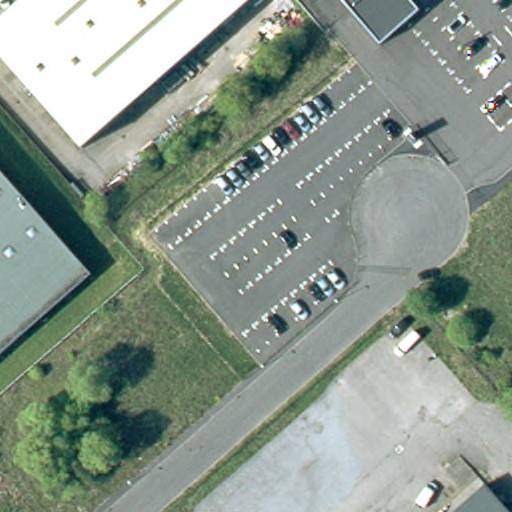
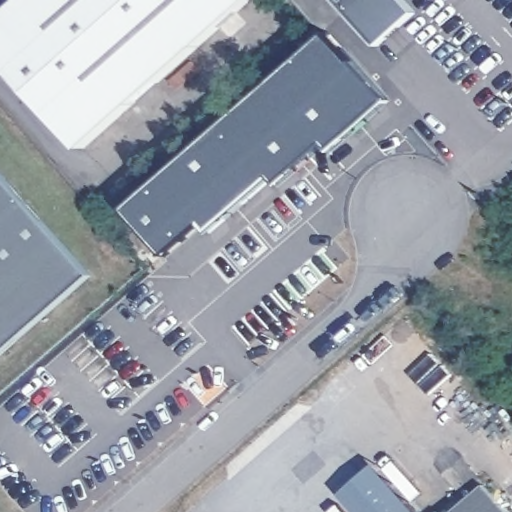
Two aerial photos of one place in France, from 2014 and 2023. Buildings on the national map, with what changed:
unchanged [(87,149),(0,50),(0,25),(28,0),(255,0),(87,149)]
unchanged [(343,0),(410,0),(420,11),(382,45),(343,0)]
new [(333,30),(393,99),(334,151),(327,142),(281,184),(275,176),(213,230),(207,223),(169,256),(128,209),(333,30)]
unchanged [(0,353),(0,162),(95,270),(0,353)]
new [(343,495),(377,465),(420,512),(358,512),(343,495)]
unchanged [(480,486),(503,512),(451,512),(480,486)]

